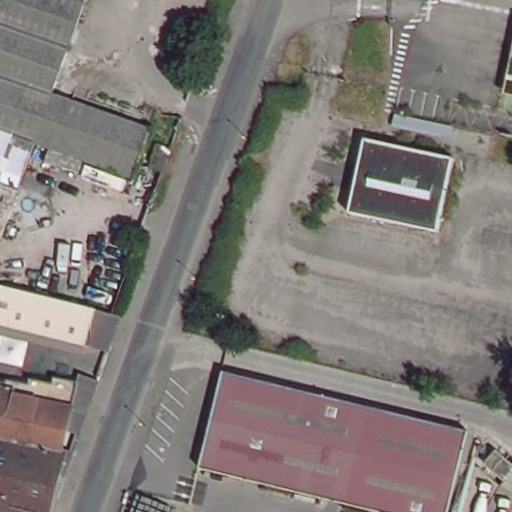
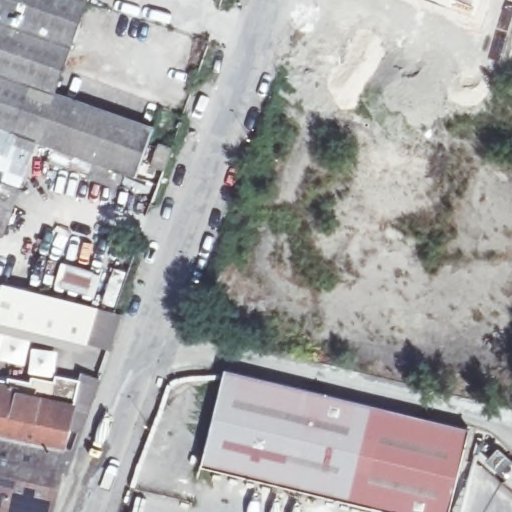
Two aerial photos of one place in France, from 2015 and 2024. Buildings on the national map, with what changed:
unchanged [(1,240),(0,239),(0,0),(86,0),(52,97),(151,135),(135,182),(35,145),(1,240)]
demolished [(512,74),(512,97),(507,96),(512,74)]
demolished [(368,138),(457,159),(437,233),(350,213),(368,138)]
unchanged [(149,170),(157,147),(170,153),(163,176),(149,170)]
unchanged [(5,330),(12,299),(0,296),(0,281),(124,311),(120,324),(110,357),(90,353),(5,330)]
unchanged [(5,330),(0,329),(0,296),(12,299),(5,330)]
unchanged [(232,374),(417,418),(396,512),(382,512),(208,472),(232,374)]
unchanged [(29,388),(52,393),(55,388),(78,395),(50,512),(0,512),(0,402),(24,408),(29,388)]
unchanged [(474,433),(455,512),(396,512),(417,418),(474,433)]

